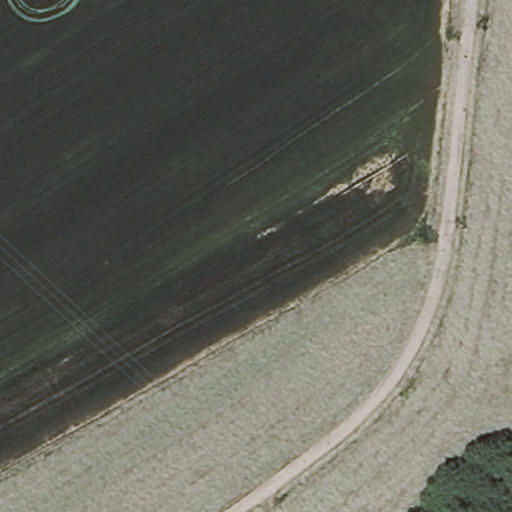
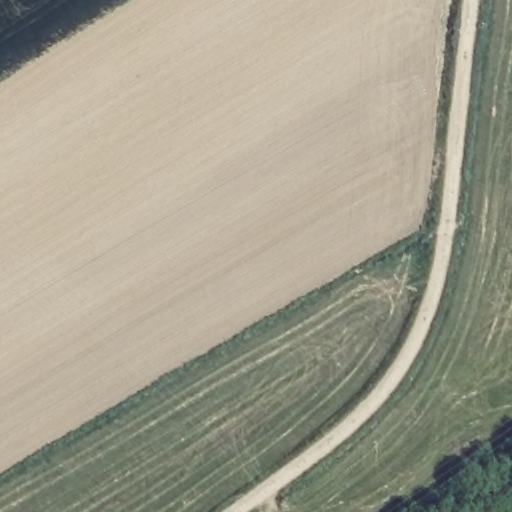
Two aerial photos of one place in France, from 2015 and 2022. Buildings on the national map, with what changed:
[]

